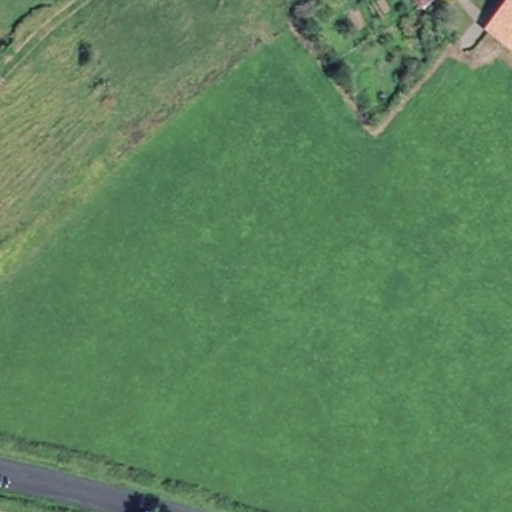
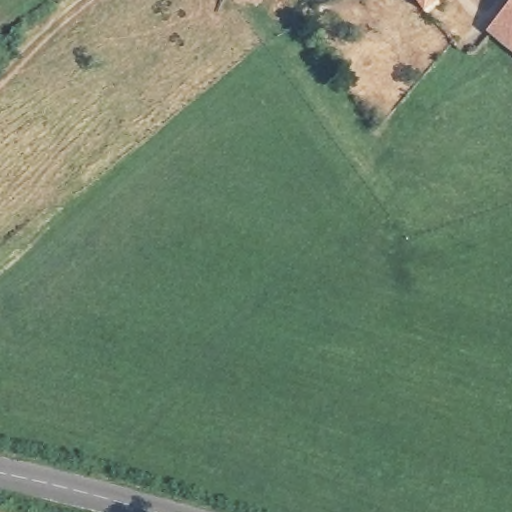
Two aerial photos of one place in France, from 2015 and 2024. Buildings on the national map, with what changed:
unchanged [(424,15),(411,0),(444,0),(424,15)]
unchanged [(511,0),(512,0),(512,57),(483,37),(511,0)]

